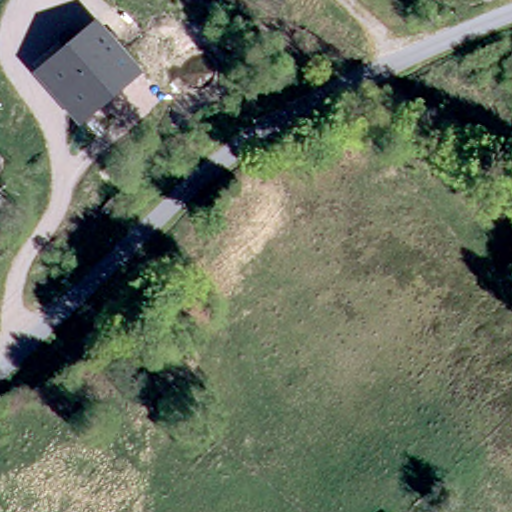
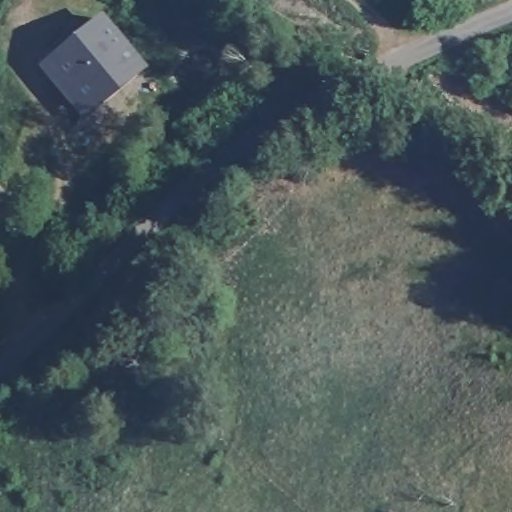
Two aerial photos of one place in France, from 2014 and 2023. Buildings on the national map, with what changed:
unchanged [(146,66),(83,119),(39,65),(101,14),(146,66)]

